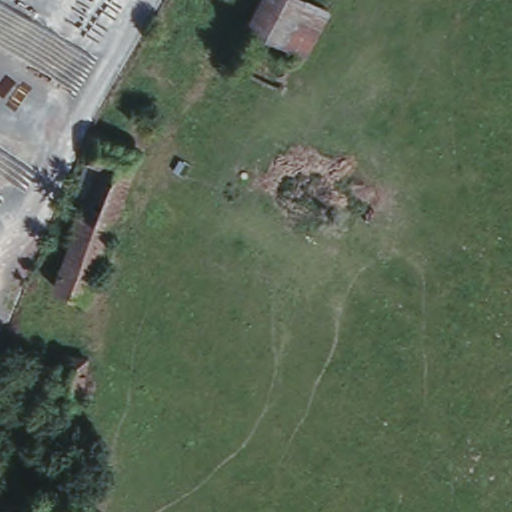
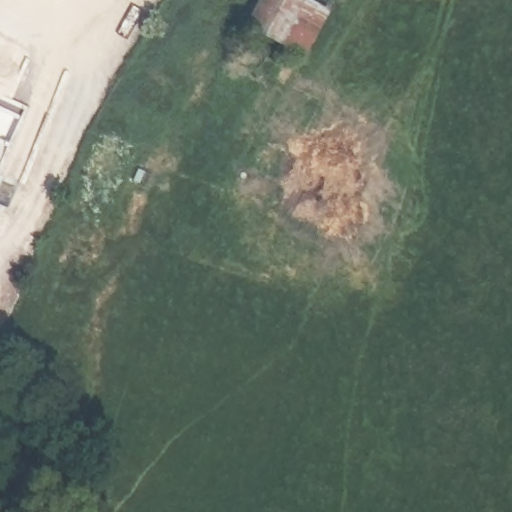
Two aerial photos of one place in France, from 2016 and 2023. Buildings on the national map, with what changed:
unchanged [(331,13),(309,58),(239,30),(257,0),(304,0),(331,13)]
unchanged [(142,156),(87,300),(53,286),(79,214),(72,211),(99,138),(142,156)]
unchanged [(87,364),(75,407),(54,399),(65,357),(87,364)]

